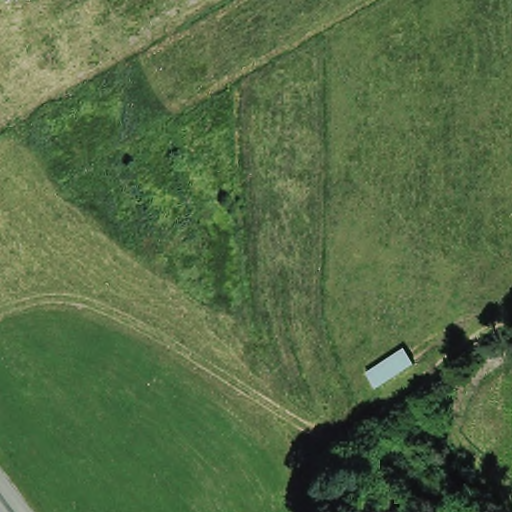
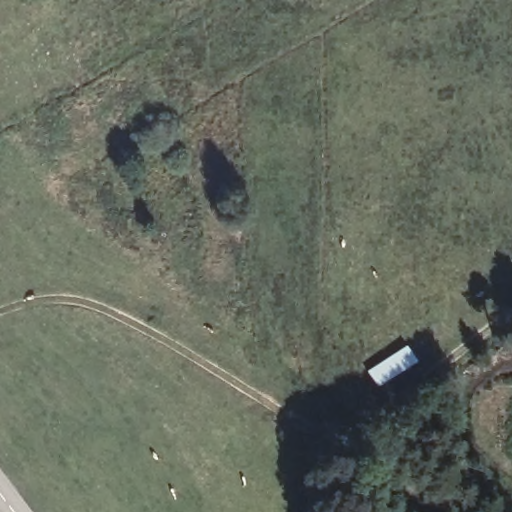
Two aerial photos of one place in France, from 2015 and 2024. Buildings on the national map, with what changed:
unchanged [(379,388),(372,376),(409,352),(417,365),(379,388)]

